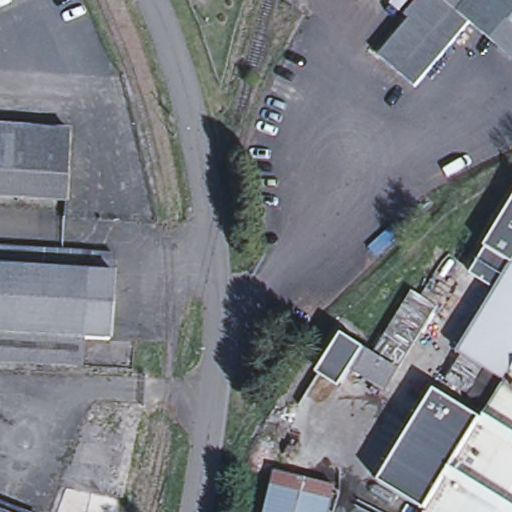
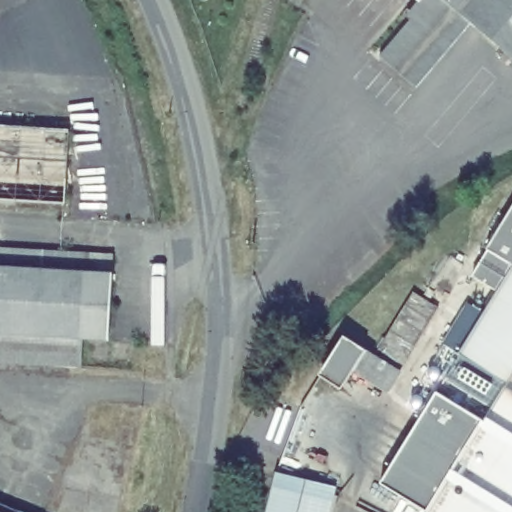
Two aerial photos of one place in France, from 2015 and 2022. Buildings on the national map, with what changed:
unchanged [(512,60),(470,24),(416,88),(379,57),(420,10),(415,6),(420,0),(512,0),(512,60)]
unchanged [(69,133),(65,203),(0,199),(0,129),(69,133)]
unchanged [(512,210),(512,268),(495,293),(470,277),(512,210)]
unchanged [(134,257),(137,257),(136,277),(132,342),(106,340),(0,334),(0,249),(134,257)]
unchanged [(450,381),(465,356),(462,355),(512,276),(512,512),(434,512),(489,423),(497,409),(450,381)]
unchanged [(439,309),(385,395),(369,385),(355,408),(339,398),(345,390),(351,394),(360,379),(354,375),(367,353),(374,357),(399,316),(413,293),(420,297),(439,309)]
unchanged [(106,340),(105,369),(0,363),(0,334),(106,340)]
unchanged [(352,373),(337,391),(317,377),(340,338),(365,351),(352,373)]
unchanged [(489,423),(434,512),(428,512),(384,485),(439,394),(489,423)]
unchanged [(329,512),(267,512),(277,475),(335,489),(329,512)]
unchanged [(117,512),(56,512),(65,490),(119,500),(117,512)]

